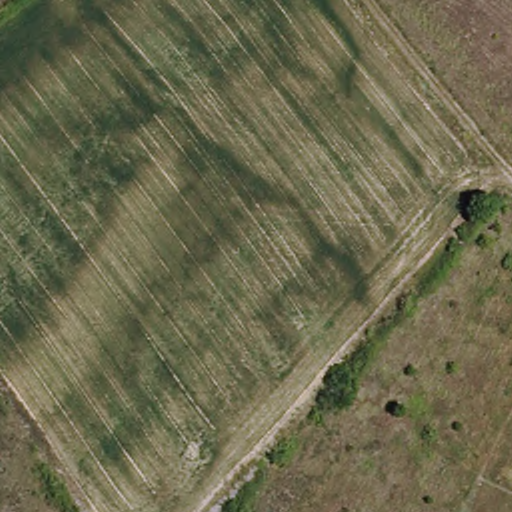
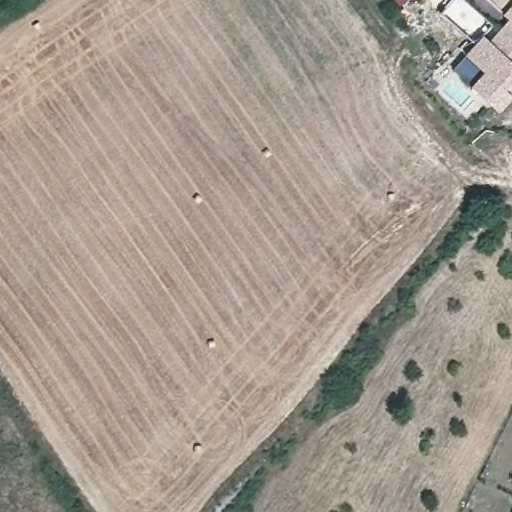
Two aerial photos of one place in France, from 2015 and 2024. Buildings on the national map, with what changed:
new [(470,85),(484,70),(466,55),(482,35),(489,41),(509,17),(502,12),(512,2),(512,95),(499,110),(470,85)]

